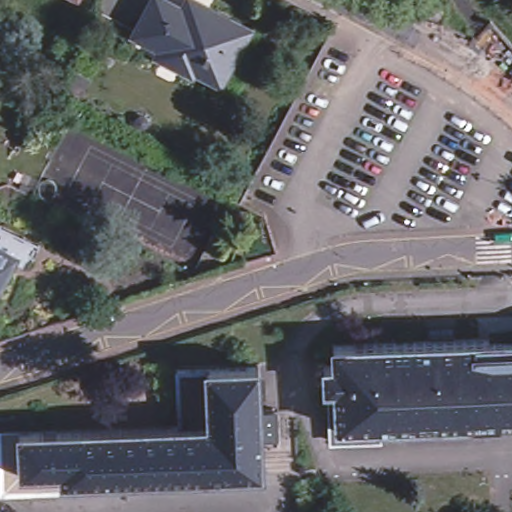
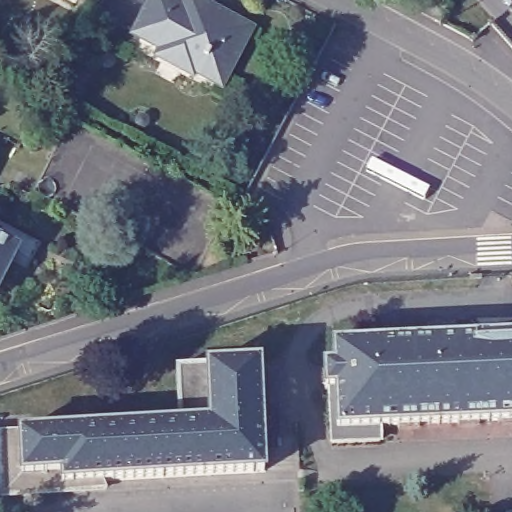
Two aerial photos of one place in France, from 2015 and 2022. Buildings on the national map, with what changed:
unchanged [(208,0),(243,19),(214,72),(154,41),(156,36),(130,21),(141,0),(180,0),(194,7),(198,0),(208,0)]
unchanged [(0,283),(0,237),(19,246),(0,283)]
unchanged [(380,427),(380,441),(332,443),(330,389),(325,388),(324,367),(333,366),(333,345),(512,338),(512,422),(380,427)]
unchanged [(256,415),(273,414),(274,435),(257,436),(259,475),(56,485),(55,476),(15,477),(14,454),(25,451),(25,434),(173,427),(172,369),(254,366),(256,415)]

